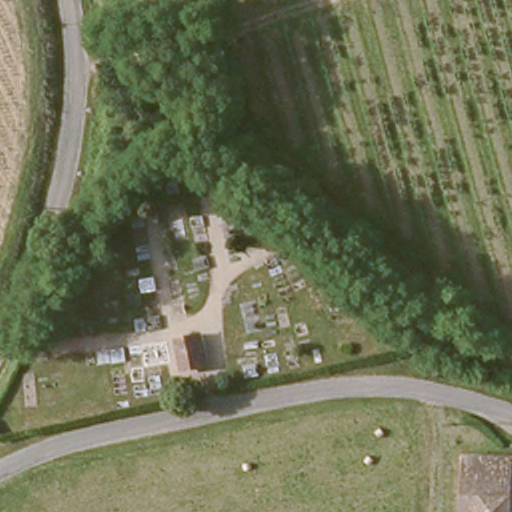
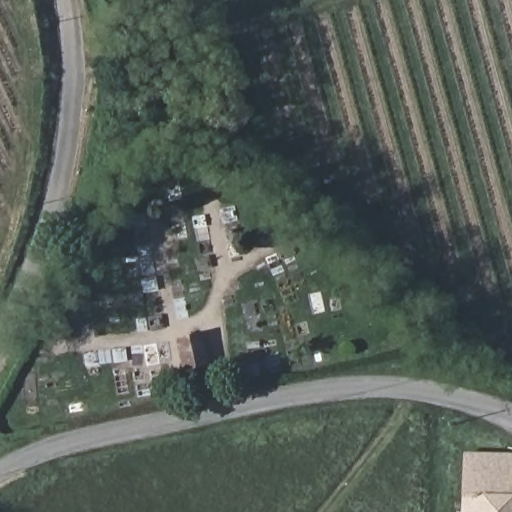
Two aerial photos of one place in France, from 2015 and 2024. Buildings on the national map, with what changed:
unchanged [(185,374),(177,333),(212,325),(221,364),(185,374)]
unchanged [(470,456),(512,456),(512,512),(469,512),(470,456)]

